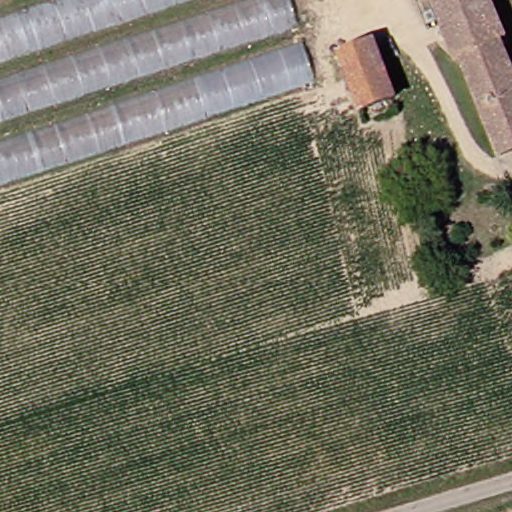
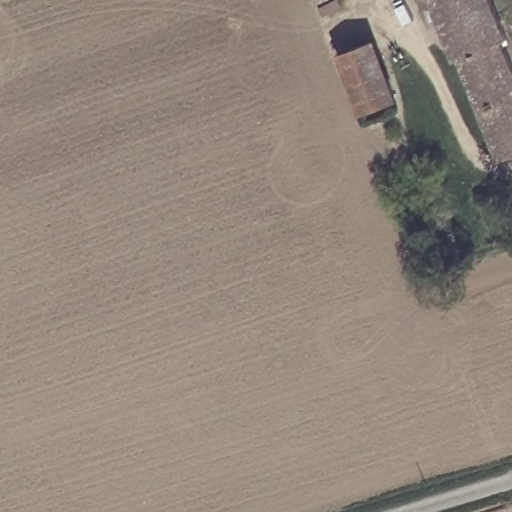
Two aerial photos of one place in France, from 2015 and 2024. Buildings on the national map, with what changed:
demolished [(52,0),(291,0),(329,119),(178,168),(163,129),(0,182),(0,17),(52,0)]
unchanged [(497,136),(465,55),(459,58),(437,0),(500,0),(512,27),(512,36),(509,37),(512,43),(512,154),(505,157),(497,136)]
unchanged [(375,38),(397,94),(365,106),(342,51),(375,38)]

